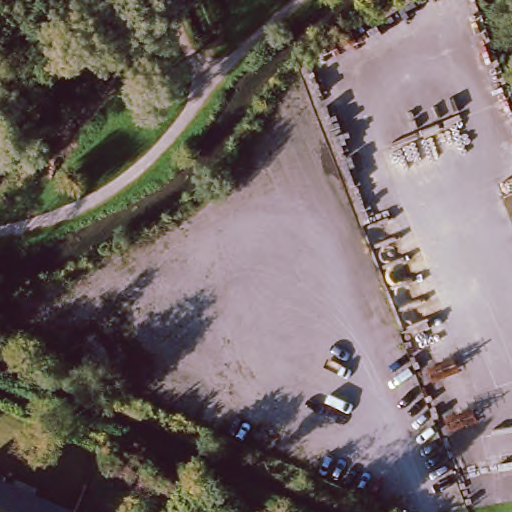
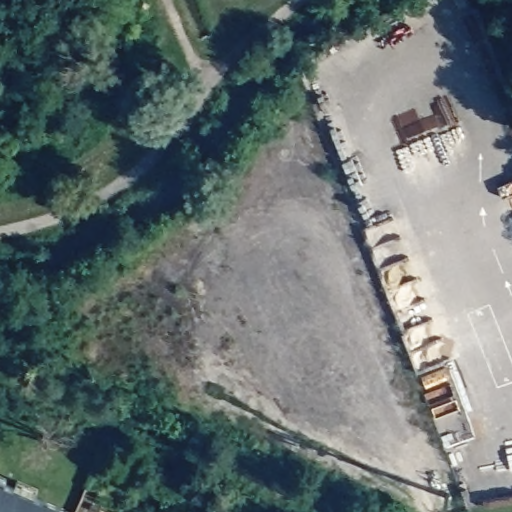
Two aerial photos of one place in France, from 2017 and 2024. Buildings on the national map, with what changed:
unchanged [(71,512),(0,512),(0,479),(71,512)]

